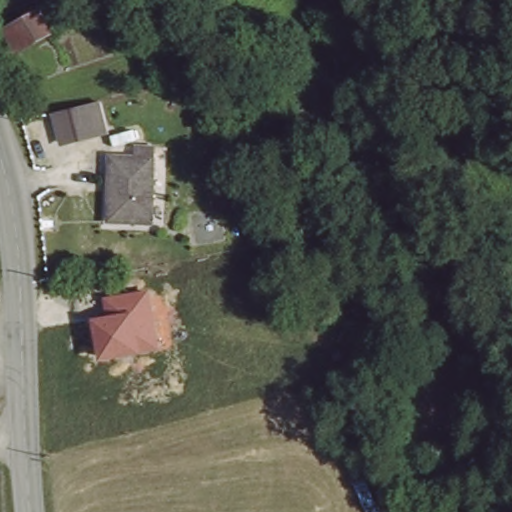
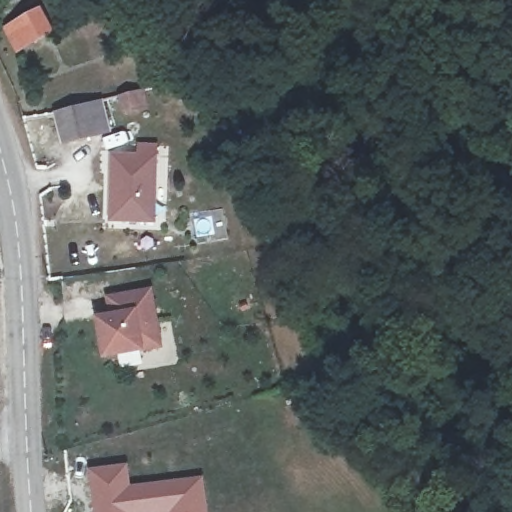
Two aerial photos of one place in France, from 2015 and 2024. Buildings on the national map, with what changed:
unchanged [(25,55),(14,41),(11,38),(8,34),(12,26),(21,12),(29,2),(36,11),(52,32),(36,45),(33,48),(25,55)]
unchanged [(59,113),(105,100),(112,136),(67,147),(59,113)]
unchanged [(113,154),(158,155),(155,225),(112,220),(113,154)]
unchanged [(110,292),(122,289),(151,281),(166,334),(112,350),(102,314),(116,310),(110,292)]
new [(204,512),(99,512),(94,472),(125,468),(129,489),(202,480),(204,512)]

